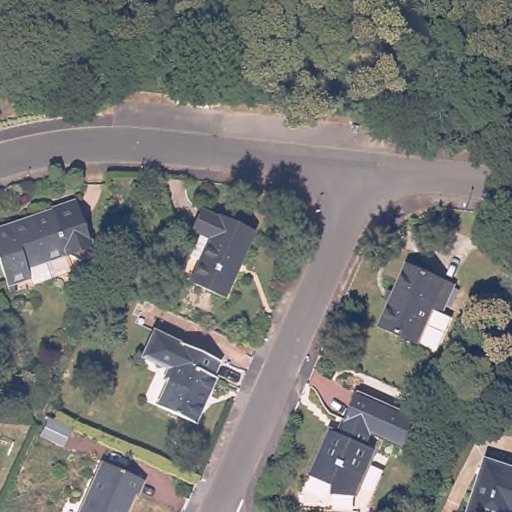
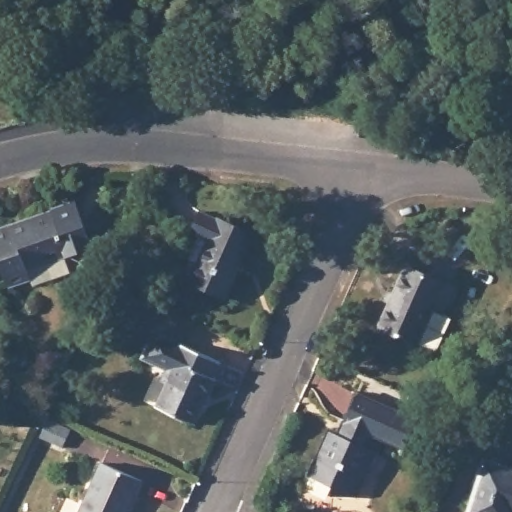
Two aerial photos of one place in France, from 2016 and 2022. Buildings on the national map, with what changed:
unchanged [(6,295),(4,287),(0,276),(0,228),(7,226),(19,222),(48,212),(46,210),(72,202),(91,256),(72,262),(63,257),(59,258),(65,276),(6,295)]
unchanged [(194,260),(204,238),(195,234),(204,214),(221,222),(223,219),(258,235),(229,301),(194,285),(203,264),(194,260)]
unchanged [(432,346),(412,337),(411,339),(373,322),(401,259),(449,281),(448,284),(454,287),(447,302),(441,300),(436,309),(446,313),(432,346)]
unchanged [(158,407),(177,363),(170,360),(177,345),(220,363),(213,379),(216,380),(196,425),(158,407)]
unchanged [(334,496),(333,485),(313,475),(310,473),(331,431),(340,434),(358,393),(417,421),(404,448),(381,438),(376,450),(355,496),(334,496)]
unchanged [(512,468),(512,512),(469,512),(487,460),(512,468)]
unchanged [(144,482),(137,497),(135,496),(128,512),(81,512),(103,463),(144,482)]

